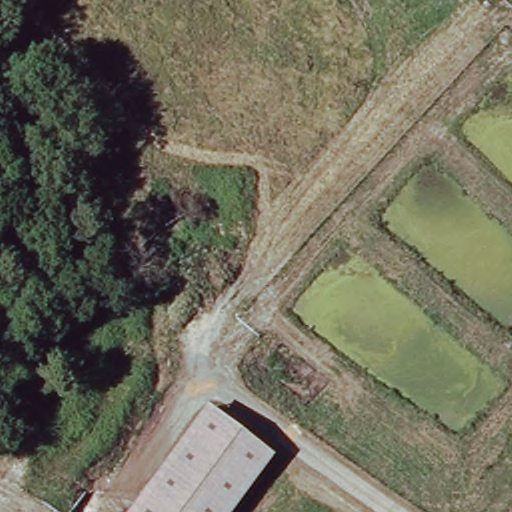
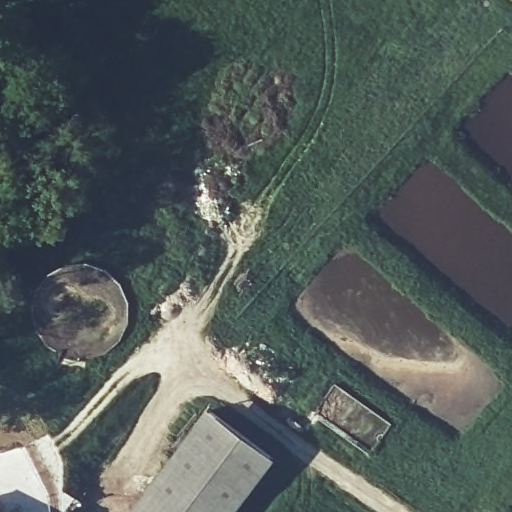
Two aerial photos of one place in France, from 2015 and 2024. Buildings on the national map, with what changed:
unchanged [(276,455),(234,512),(131,512),(212,407),(276,455)]

